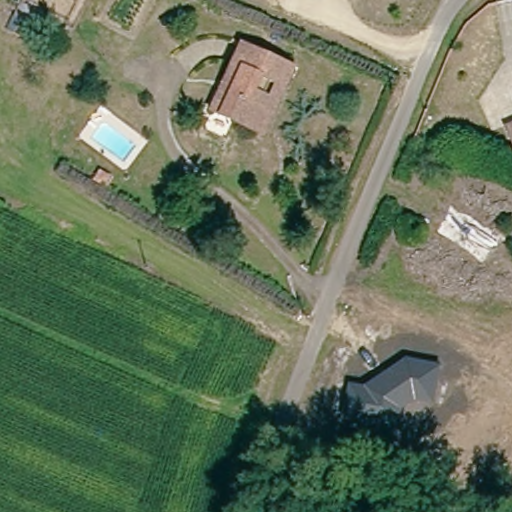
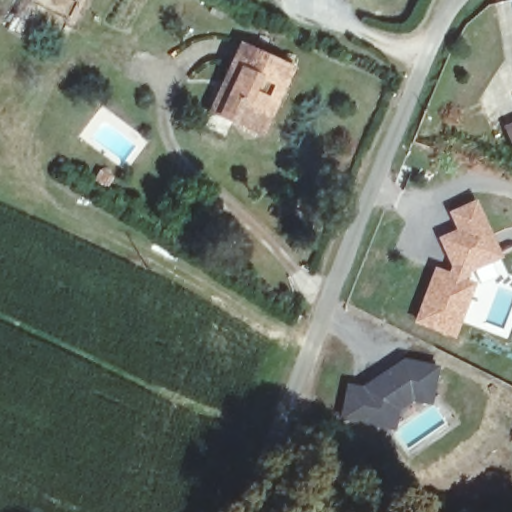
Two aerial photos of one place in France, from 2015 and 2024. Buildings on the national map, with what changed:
unchanged [(251,129),(218,114),(207,110),(227,67),(236,47),(289,69),(279,89),(259,132),(251,129)]
unchanged [(512,123),(512,142),(506,126),(512,123)]
new [(449,267),(453,260),(441,232),(459,224),(451,207),(475,197),(482,215),(497,251),(464,265),(460,272),(471,277),(450,327),(414,312),(436,262),(449,267)]
unchanged [(404,358),(440,363),(430,402),(411,400),(397,411),(395,414),(393,431),(340,422),(346,385),(363,386),(404,358)]

